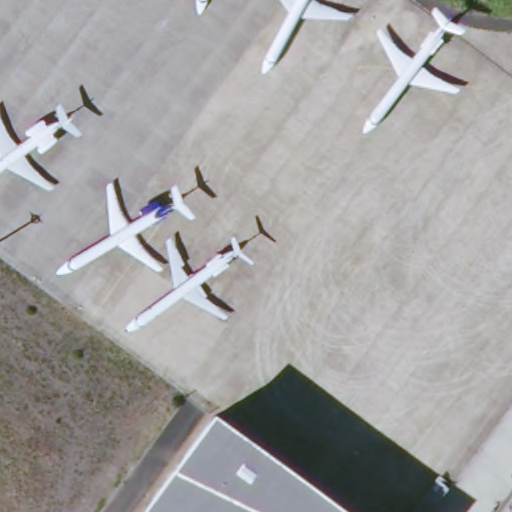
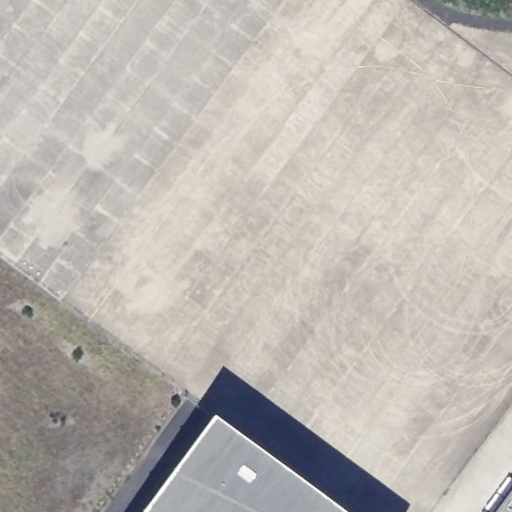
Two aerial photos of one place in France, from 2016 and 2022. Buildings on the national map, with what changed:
unchanged [(225,397),(377,512),(137,512),(225,397)]
unchanged [(512,489),(512,512),(495,512),(512,489)]

